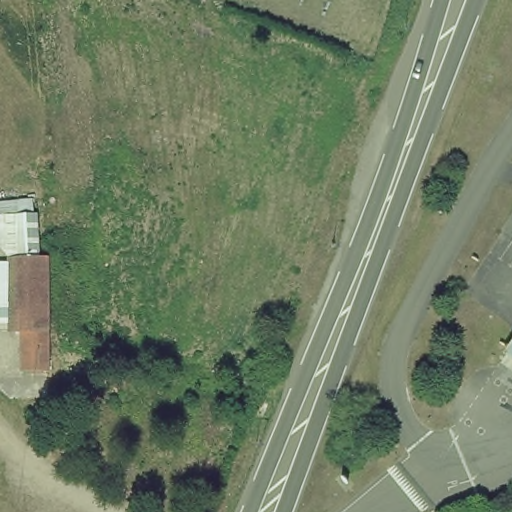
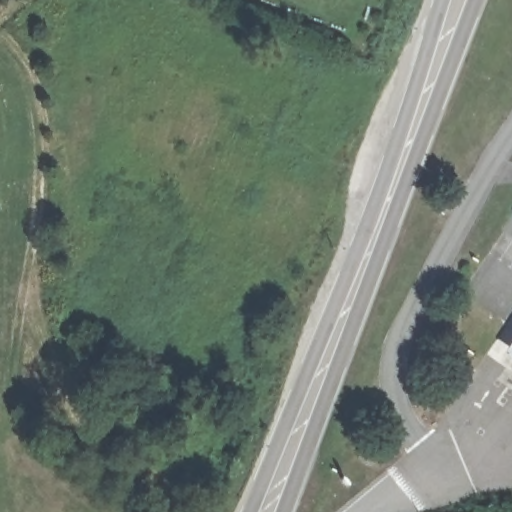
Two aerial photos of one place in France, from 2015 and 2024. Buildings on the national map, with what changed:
demolished [(22,337),(8,336),(8,327),(0,327),(0,258),(16,258),(16,211),(38,211),(38,255),(52,256),(49,374),(18,376),(22,337)]
new [(512,334),(512,363),(499,354),(512,334)]
demolished [(498,358),(512,340),(512,368),(498,358)]

